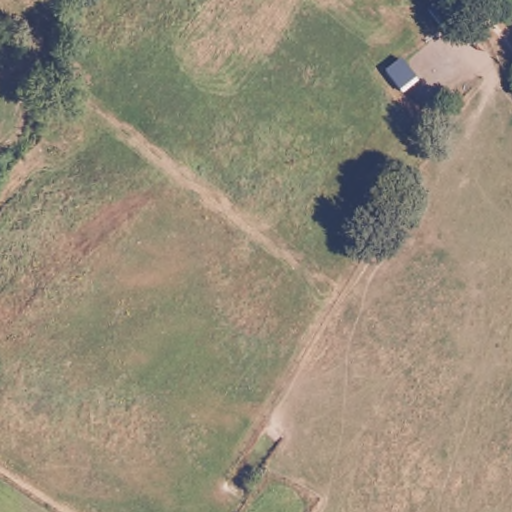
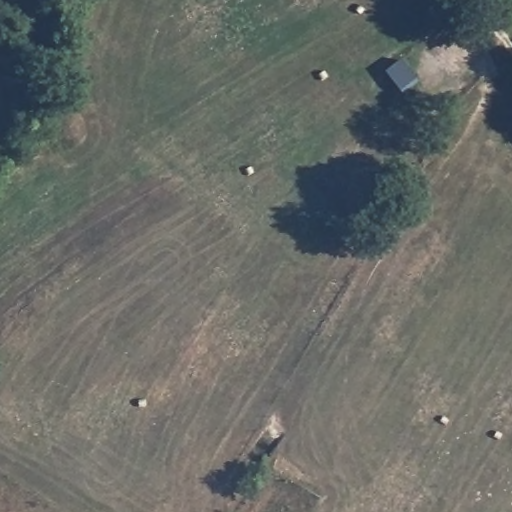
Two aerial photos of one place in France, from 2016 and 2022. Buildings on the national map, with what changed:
[]

